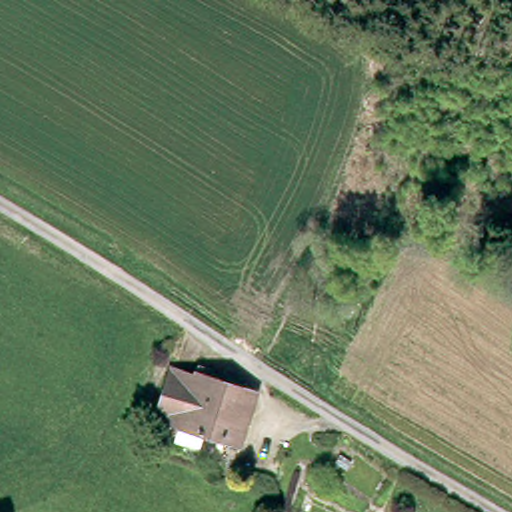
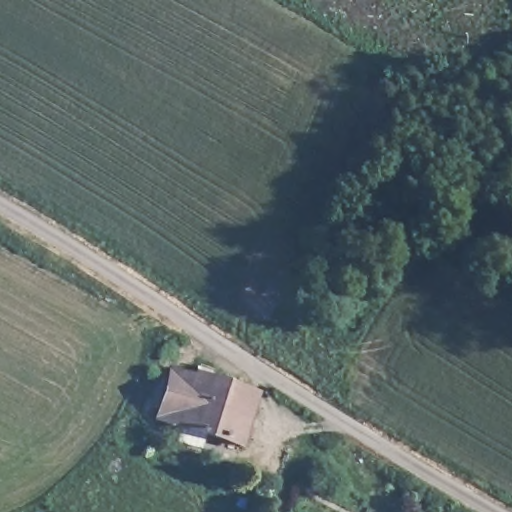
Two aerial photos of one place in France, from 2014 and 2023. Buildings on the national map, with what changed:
unchanged [(240,446),(149,415),(169,364),(257,397),(240,446)]

